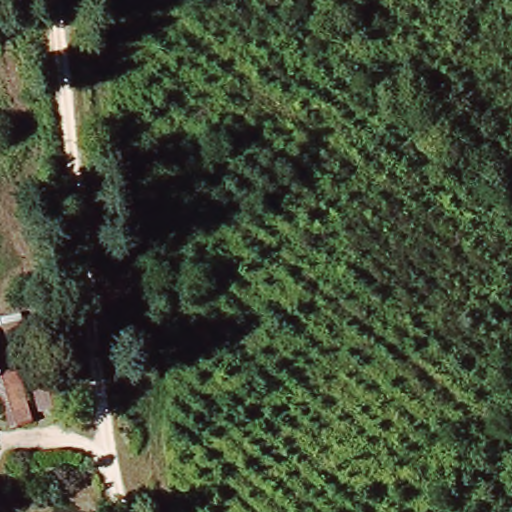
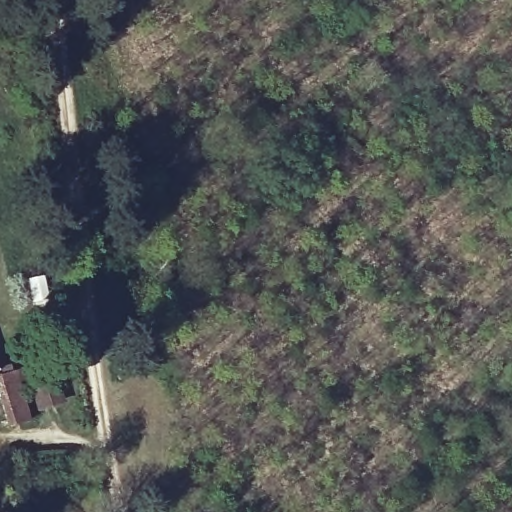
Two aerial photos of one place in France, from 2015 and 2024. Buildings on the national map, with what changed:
unchanged [(17,371),(32,418),(10,424),(0,391),(0,376),(17,371)]

